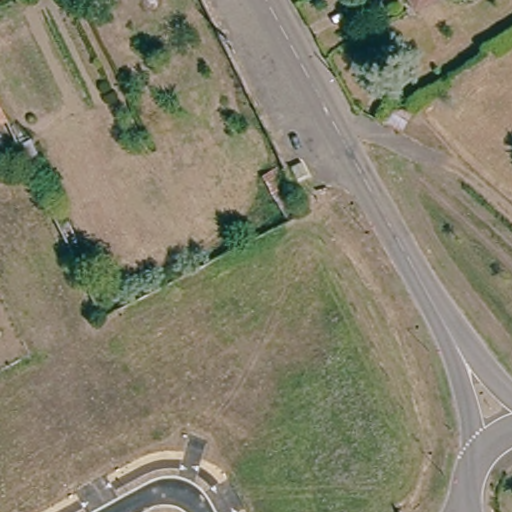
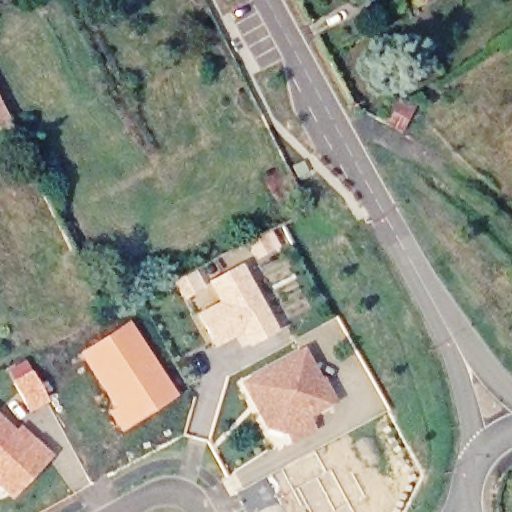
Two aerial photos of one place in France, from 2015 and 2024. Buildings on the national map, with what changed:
unchanged [(420,8),(416,0),(434,0),(420,8)]
unchanged [(402,132),(382,122),(394,97),(412,106),(402,132)]
unchanged [(9,121),(0,125),(0,103),(9,121)]
unchanged [(36,156),(27,162),(18,147),(29,140),(36,156)]
unchanged [(88,247),(72,256),(54,219),(70,211),(88,247)]
demolished [(71,256),(55,263),(37,227),(54,219),(71,256)]
new [(247,349),(240,336),(212,350),(195,317),(216,304),(206,283),(241,266),(277,333),(247,349)]
new [(127,320),(177,397),(120,433),(105,411),(110,407),(77,354),(127,320)]
new [(293,446),(286,433),(284,434),(268,430),(259,412),(255,406),(245,387),(305,355),(320,385),(322,385),(333,405),(306,420),(307,422),(314,435),(293,446)]
new [(25,358),(49,402),(29,414),(4,370),(25,358)]
new [(0,492),(0,416),(15,431),(20,427),(52,457),(10,501),(0,492)]

